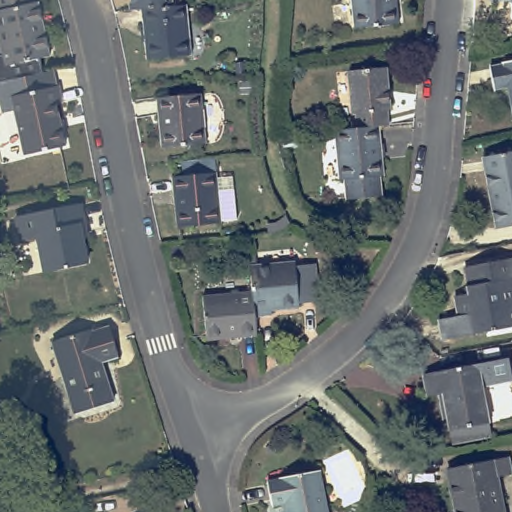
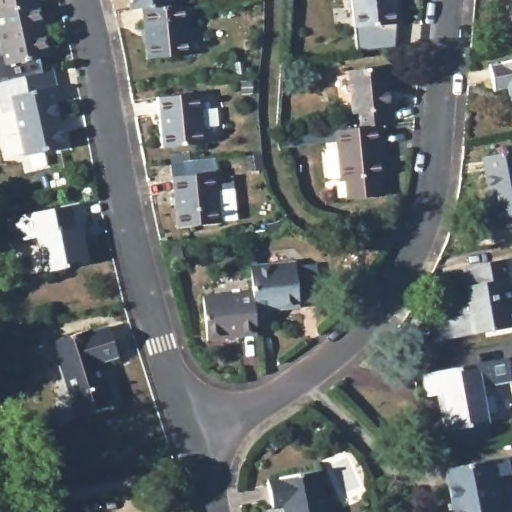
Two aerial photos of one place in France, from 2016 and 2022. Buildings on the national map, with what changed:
unchanged [(49,50),(6,60),(0,33),(0,0),(38,0),(49,50)]
unchanged [(129,0),(171,0),(172,7),(142,10),(130,11),(129,0)]
unchanged [(398,22),(355,27),(352,0),(396,0),(398,22)]
unchanged [(172,7),(187,5),(191,53),(146,58),(142,10),(172,7)]
unchanged [(505,62),(512,61),(512,103),(510,88),(496,90),(491,67),(505,65),(505,62)]
unchanged [(359,113),(357,113),(353,72),(392,67),(396,110),(392,110),(393,123),(385,124),(361,127),(359,113)]
unchanged [(21,117),(9,120),(7,109),(0,111),(0,93),(57,81),(60,96),(18,106),(21,117)]
unchanged [(202,94),(206,143),(161,147),(157,99),(202,94)]
unchanged [(60,96),(63,96),(66,112),(60,113),(70,155),(31,163),(21,117),(18,106),(60,96)]
unchanged [(361,127),(385,124),(389,174),(384,174),(386,195),(351,199),(348,179),(344,178),(339,130),(361,127)]
unchanged [(512,224),(499,226),(484,157),(512,152),(512,224)]
unchanged [(217,172),(219,191),(234,190),(237,219),(222,221),(222,222),(177,227),(172,177),(217,172)]
unchanged [(47,271),(40,236),(24,240),(19,217),(80,204),(84,223),(86,238),(80,239),(84,263),(47,271)]
unchanged [(457,295),(471,293),(466,268),(512,260),(512,326),(444,339),(440,319),(460,316),(457,295)]
unchanged [(295,264),(296,269),(316,267),(320,303),(299,305),(299,308),(272,310),(272,314),(254,316),(251,290),(249,267),(295,264)]
unchanged [(254,316),(256,335),(208,341),(204,296),(251,290),(254,316)]
unchanged [(93,329),(93,332),(109,327),(118,358),(103,363),(115,401),(75,414),(52,342),(93,329)]
unchanged [(446,431),(439,394),(427,397),(423,373),(510,358),(512,371),(512,382),(485,387),(491,422),(446,431)]
unchanged [(512,469),(512,472),(498,475),(505,512),(456,512),(448,469),(510,455),(512,469)]
unchanged [(283,477),(319,469),(328,512),(289,512),(288,502),(271,505),(267,483),(282,480),(283,477)]

